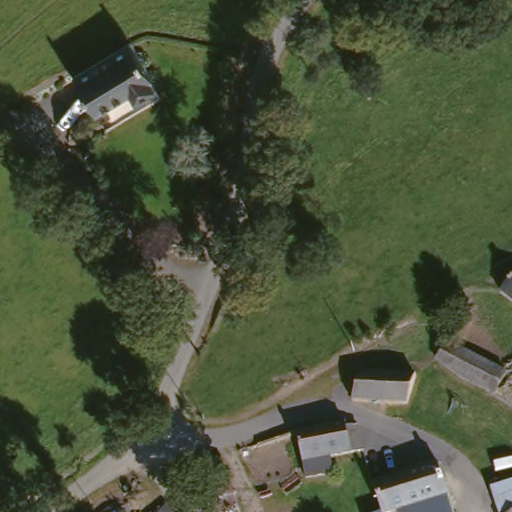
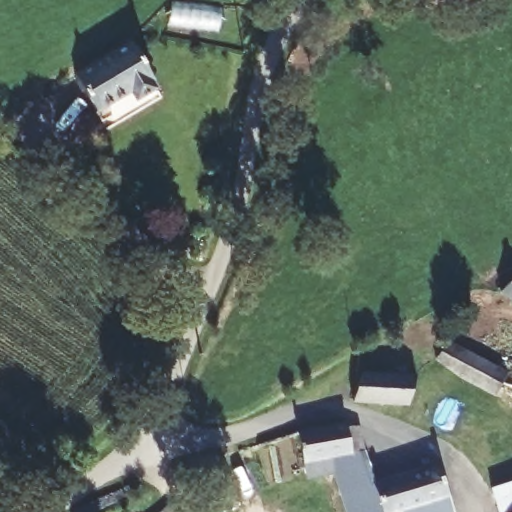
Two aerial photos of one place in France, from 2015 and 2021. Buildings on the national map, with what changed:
unchanged [(136,104),(130,93),(95,112),(75,71),(130,40),(156,92),(136,104)]
unchanged [(512,283),(512,304),(502,297),(512,283)]
unchanged [(505,372),(491,397),(432,361),(446,336),(505,372)]
unchanged [(401,372),(418,374),(412,402),(412,403),(365,402),(357,401),(365,371),(401,372)]
unchanged [(357,450),(335,454),(336,472),(304,476),(304,457),(251,476),(242,450),(297,429),(354,421),(357,450)]
new [(355,427),(362,426),(365,450),(376,483),(373,484),(381,512),(346,512),(333,473),(336,472),(335,454),(357,450),(355,427)]
unchanged [(373,484),(437,465),(453,512),(381,512),(373,484)]
unchanged [(485,488),(512,480),(512,512),(491,512),(485,488)]
unchanged [(170,505),(177,512),(164,512),(170,505)]

